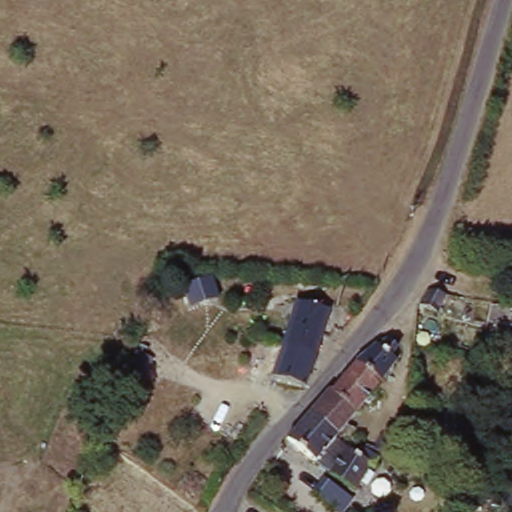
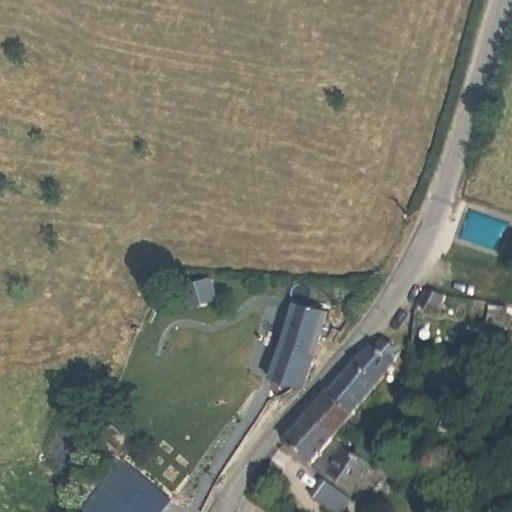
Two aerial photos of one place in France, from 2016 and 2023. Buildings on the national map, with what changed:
unchanged [(438,316),(418,310),(429,297),(444,300),(438,316)]
unchanged [(269,384),(292,308),(326,320),(304,392),(288,389),(269,384)]
unchanged [(494,311),(512,314),(512,319),(509,333),(490,327),(494,311)]
unchanged [(321,429),(307,421),(309,418),(327,395),(330,397),(349,376),(365,362),(377,353),(379,355),(388,345),(397,352),(389,362),(395,368),(375,392),(354,416),(338,437),(321,429)]
unchanged [(329,445),(344,455),(346,453),(356,460),(359,452),(374,462),(353,496),(335,484),(319,472),(286,448),(307,421),(321,429),(338,437),(329,445)]
unchanged [(449,438),(444,448),(434,445),(441,422),(464,430),(461,441),(449,438)]
unchanged [(381,440),(394,447),(387,461),(373,454),(381,440)]
new [(81,511),(122,460),(174,501),(164,512),(83,512),(81,511)]
unchanged [(373,497),(373,495),(373,492),(373,490),(375,487),(377,485),(381,485),(383,486),(387,487),(389,492),(388,495),(387,498),(386,500),(384,501),(382,502),(379,502),(376,501),(373,498),(373,497)]
unchanged [(325,487),(353,508),(349,512),(325,512),(312,503),(325,487)]
unchanged [(492,505),(512,508),(512,512),(490,512),(492,505)]

